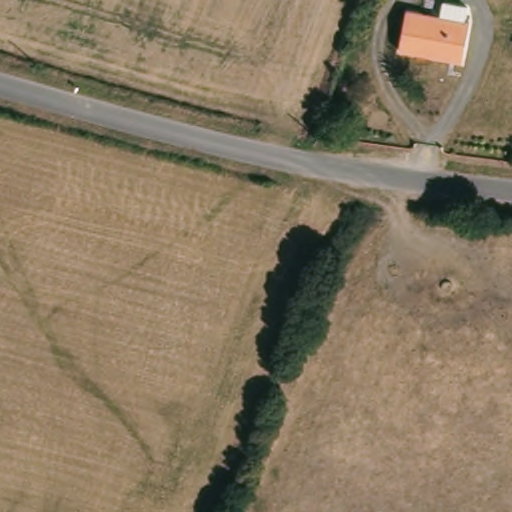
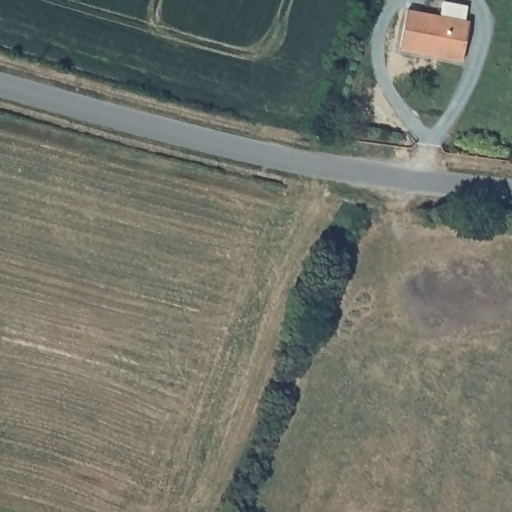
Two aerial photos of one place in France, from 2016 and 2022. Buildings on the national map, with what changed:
unchanged [(439,0),(444,0),(466,5),(463,18),(469,20),(462,60),(400,49),(409,9),(437,14),(439,0)]

